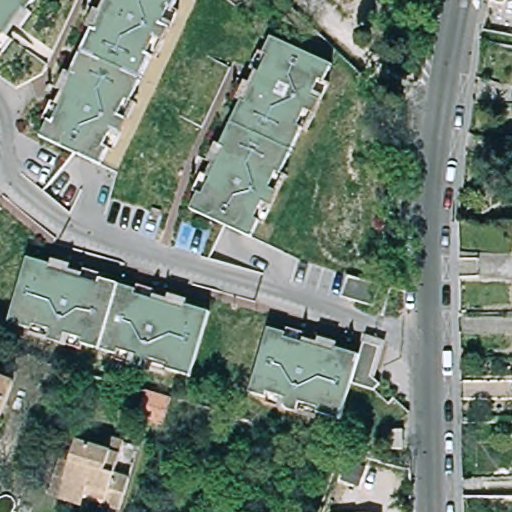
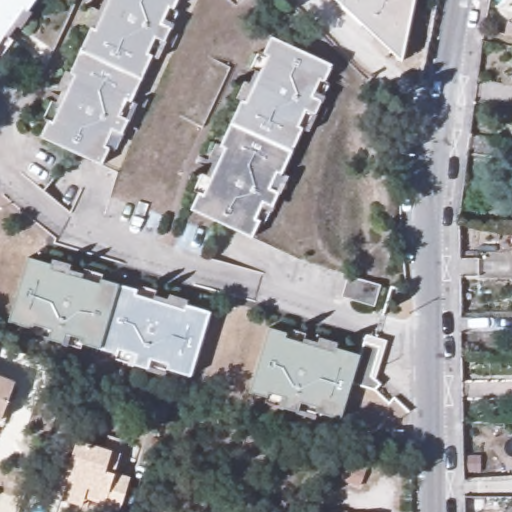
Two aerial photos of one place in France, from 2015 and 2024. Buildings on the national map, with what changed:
unchanged [(24,5),(8,27),(0,22),(0,0),(33,0),(28,8),(24,5)]
unchanged [(171,11),(166,9),(158,26),(168,30),(164,37),(101,7),(105,0),(176,0),(171,11)]
new [(402,61),(336,0),(414,0),(402,61)]
unchanged [(85,30),(90,32),(101,7),(164,37),(161,44),(151,40),(143,57),(148,59),(139,78),(76,49),(85,30)]
unchanged [(0,40),(0,22),(8,27),(0,40)]
unchanged [(336,65),(326,84),(323,82),(315,99),(323,104),(320,111),(257,81),(269,57),(264,55),(273,36),(336,65)]
unchanged [(139,78),(130,97),(126,95),(118,112),(126,117),(123,124),(60,94),(71,70),(68,68),(76,49),(139,78)]
unchanged [(241,103),(246,106),(257,81),(320,111),(316,118),(308,114),(300,131),(304,133),(295,152),(232,122),(241,103)]
unchanged [(120,131),(111,127),(103,144),(107,146),(98,165),(35,135),(45,116),(48,118),(60,94),(123,124),(120,131)]
unchanged [(295,152),(286,171),(281,169),(274,186),(283,190),(279,197),(216,168),(228,143),(223,141),(232,122),(295,152)]
unchanged [(276,205),(266,200),(259,218),(263,220),(254,238),(191,209),(200,190),(205,192),(216,168),(279,197),(276,205)]
unchanged [(41,340),(45,330),(25,324),(24,329),(3,323),(21,259),(43,265),(41,270),(68,278),(50,342),(41,340)]
unchanged [(96,286),(98,281),(118,287),(100,351),(78,345),(80,340),(61,334),(58,345),(50,342),(68,278),(96,286)]
unchanged [(140,293),(138,298),(166,306),(146,371),(138,368),(141,358),(123,352),(121,357),(100,351),(118,287),(140,293)]
unchanged [(193,314),(195,309),(216,316),(196,379),(176,373),(177,369),(158,363),(155,373),(146,371),(166,306),(193,314)]
unchanged [(285,330),(283,335),(311,343),(291,407),(284,405),(286,395),(267,389),(266,394),(245,388),(263,324),(285,330)]
unchanged [(375,377),(380,382),(374,389),(351,382),(359,353),(365,333),(388,339),(375,377)]
unchanged [(338,351),(339,346),(359,353),(351,382),(341,416),(321,410),(322,405),(303,400),(300,410),(291,407),(311,343),(338,351)]
unchanged [(1,424),(0,424),(0,380),(15,385),(1,424)]
unchanged [(173,399),(164,425),(143,417),(150,392),(173,399)]
unchanged [(48,498),(60,457),(72,461),(78,443),(111,453),(105,474),(128,482),(119,512),(108,512),(103,510),(105,506),(86,498),(81,509),(48,498)]
new [(348,456),(368,463),(359,489),(340,483),(348,456)]

